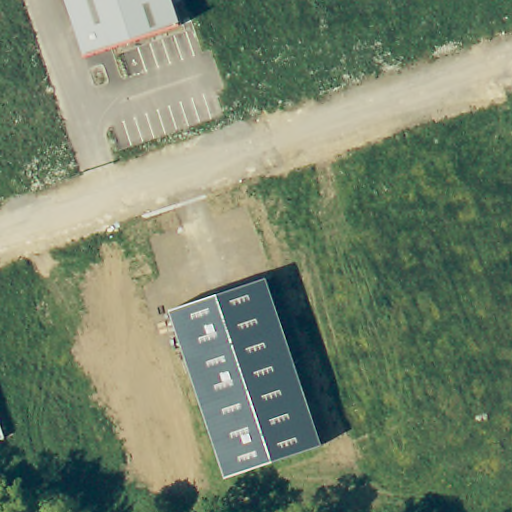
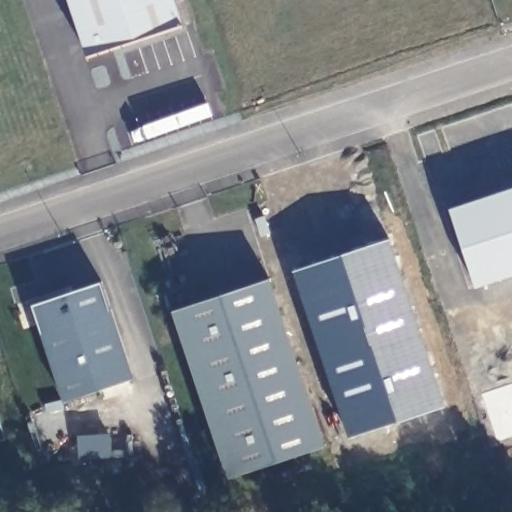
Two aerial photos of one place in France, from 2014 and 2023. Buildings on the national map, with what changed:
unchanged [(85,50),(69,0),(175,0),(185,30),(112,54),(89,62),(85,50)]
new [(512,193),(512,280),(478,291),(451,213),(512,193)]
new [(349,440),(294,272),(390,240),(445,407),(349,440)]
unchanged [(228,478),(173,310),(269,278),(324,445),(228,478)]
new [(65,400),(33,304),(101,279),(133,376),(65,400)]
unchanged [(0,446),(0,424),(6,444),(0,446)]

